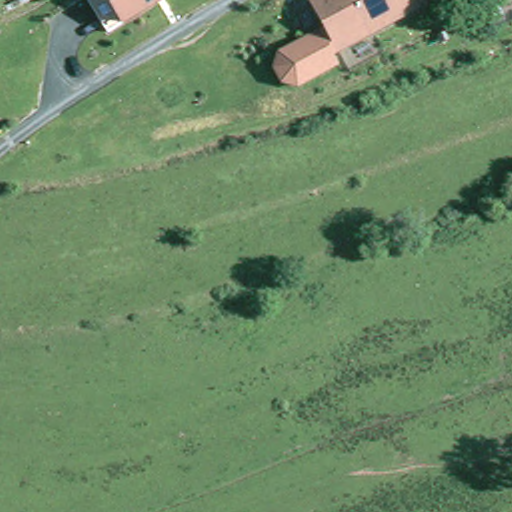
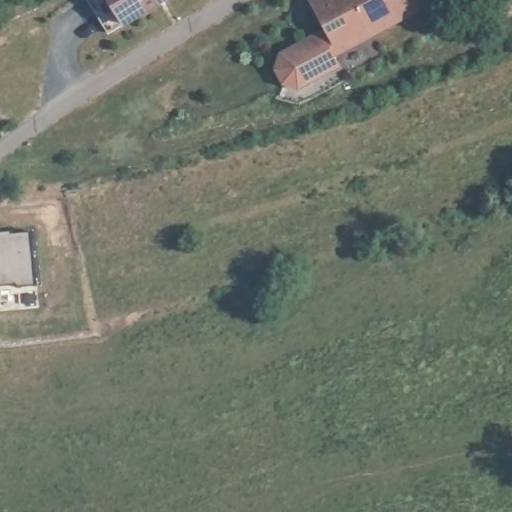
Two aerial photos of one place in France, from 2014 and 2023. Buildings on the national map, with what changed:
unchanged [(112,0),(187,0),(132,38),(122,23),(107,3),(112,0)]
unchanged [(434,5),(335,57),(340,67),(298,88),(282,81),(274,67),(280,53),(322,31),(307,0),(431,0),(434,5)]
new [(12,230),(12,233),(32,231),(37,284),(17,286),(16,283),(0,285),(0,232),(12,230)]

